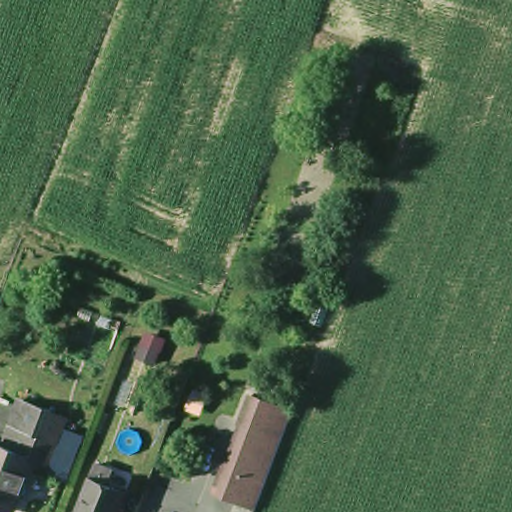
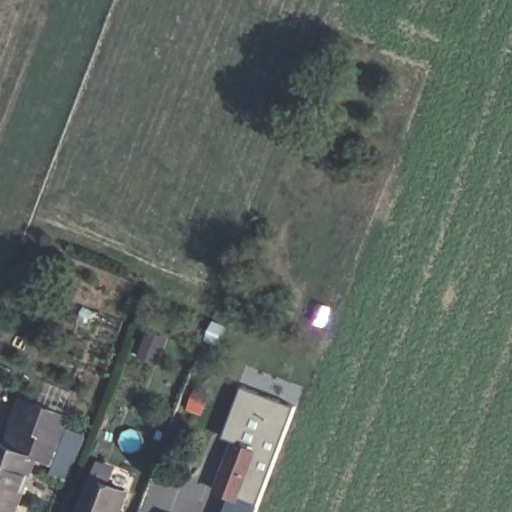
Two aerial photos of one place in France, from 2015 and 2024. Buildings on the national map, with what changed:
unchanged [(161,351),(157,362),(139,356),(142,344),(161,351)]
unchanged [(254,396),(296,412),(260,508),(240,500),(259,454),(235,446),(254,396)]
unchanged [(20,508),(15,506),(5,504),(4,506),(0,505),(0,444),(34,457),(39,459),(20,508)]
unchanged [(240,500),(217,491),(235,446),(259,454),(240,500)]
unchanged [(113,512),(76,512),(88,481),(95,464),(109,469),(103,487),(120,494),(113,512)]

